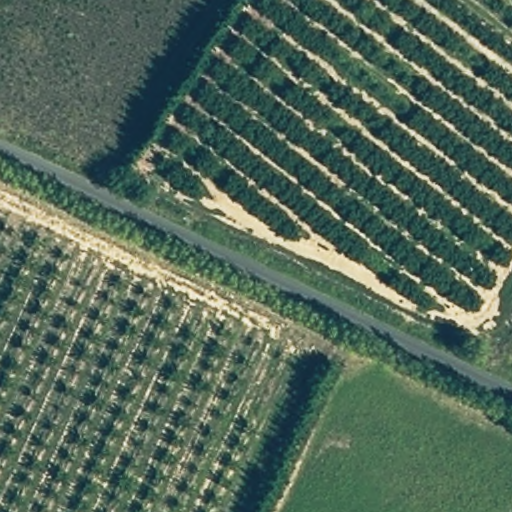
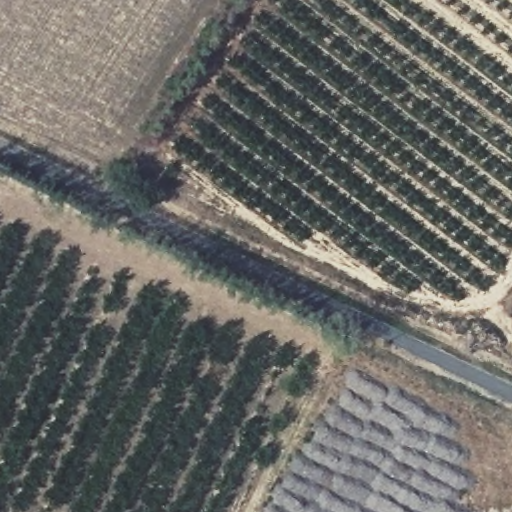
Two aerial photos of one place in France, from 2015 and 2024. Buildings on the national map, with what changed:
[]

